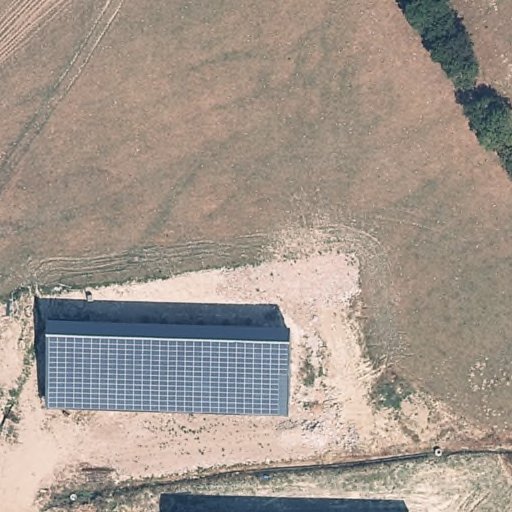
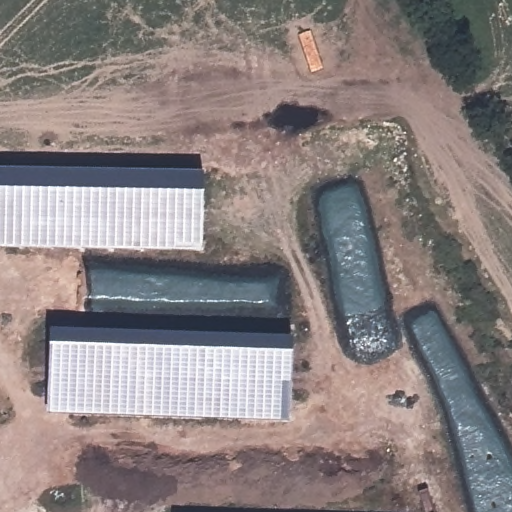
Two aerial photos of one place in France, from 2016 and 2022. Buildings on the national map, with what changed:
new [(202,249),(0,246),(0,169),(203,172),(202,249)]
unchanged [(49,329),(292,336),(289,421),(47,415),(49,329)]

